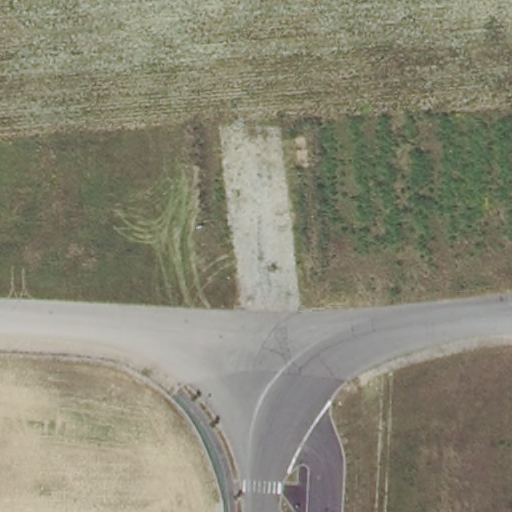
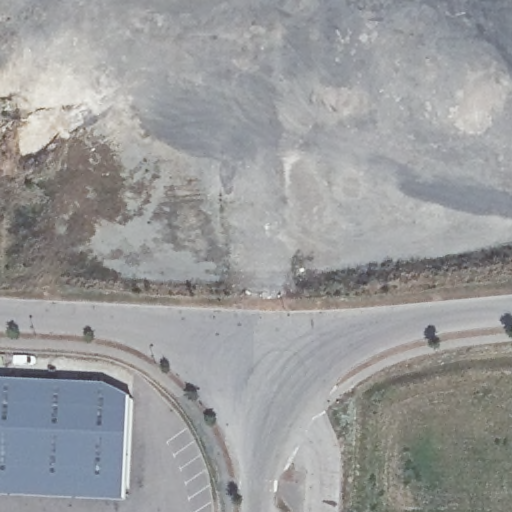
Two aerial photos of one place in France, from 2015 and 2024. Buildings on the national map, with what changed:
new [(107,388),(132,404),(128,504),(0,498),(0,385),(107,388)]

